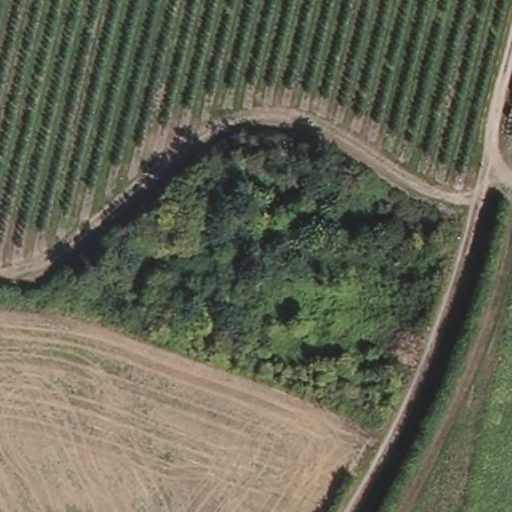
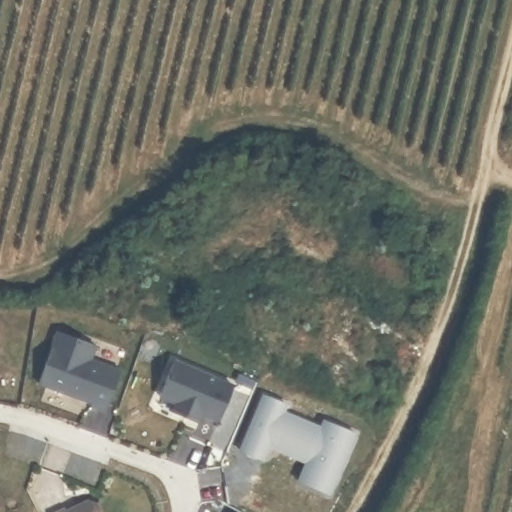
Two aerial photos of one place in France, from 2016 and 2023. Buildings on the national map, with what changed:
new [(39,382),(55,330),(97,347),(92,360),(120,369),(106,410),(39,382)]
new [(234,383),(220,421),(203,415),(201,420),(170,408),(172,403),(160,398),(174,358),(234,383)]
new [(264,393),(287,403),(283,410),(321,427),(324,420),(355,433),(329,493),(298,480),(307,458),(270,441),(262,458),(240,448),(264,393)]
new [(66,507),(67,510),(91,498),(99,500),(104,512),(56,512),(66,507)]

